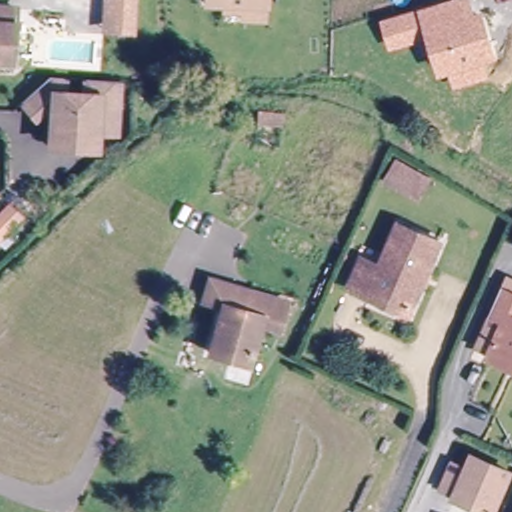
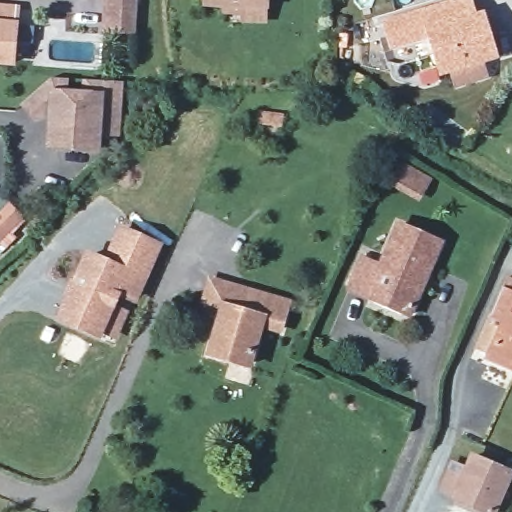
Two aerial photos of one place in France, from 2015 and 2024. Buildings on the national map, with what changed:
unchanged [(104,16),(104,0),(135,0),(134,31),(119,31),(104,31),(104,16)]
unchanged [(251,21),(251,9),(232,9),(232,7),(213,7),(213,0),(271,0),(271,9),(271,21),(251,21)]
unchanged [(447,0),(472,0),(474,8),(485,15),(496,58),(485,62),(488,77),(455,87),(450,74),(438,77),(426,39),(388,50),(379,20),(447,0)]
unchanged [(5,3),(2,62),(0,62),(0,3),(5,3)]
unchanged [(53,144),(54,132),(54,127),(56,106),(49,107),(39,116),(24,100),(54,76),(69,77),(68,93),(89,94),(89,78),(124,81),(122,104),(121,131),(101,130),(100,136),(99,148),(53,144)]
unchanged [(416,203),(406,198),(381,187),(389,171),(413,183),(423,188),(416,203)]
unchanged [(13,207),(27,212),(13,245),(0,240),(0,237),(13,207)]
unchanged [(355,263),(371,271),(391,228),(433,248),(399,318),(341,290),(355,263)]
new [(89,260),(108,267),(122,233),(158,248),(136,301),(119,293),(101,338),(63,323),(89,260)]
unchanged [(296,308),(283,335),(254,319),(236,360),(210,346),(228,305),(212,296),(222,272),(296,308)]
unchanged [(473,348),(490,312),(501,287),(512,292),(512,366),(485,354),(473,348)]
unchanged [(457,502),(443,496),(454,471),(468,477),(474,463),(511,480),(497,512),(473,512),(456,505),(457,502)]

